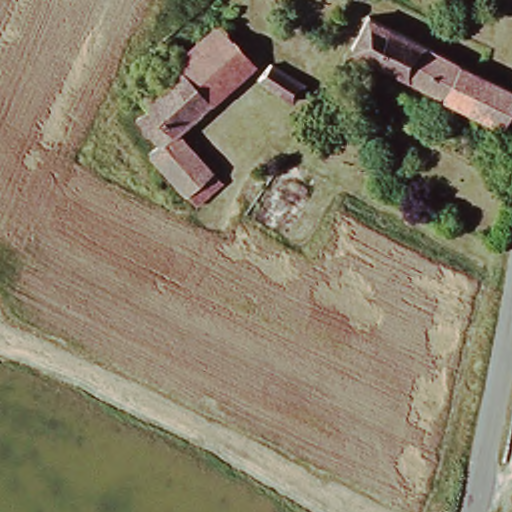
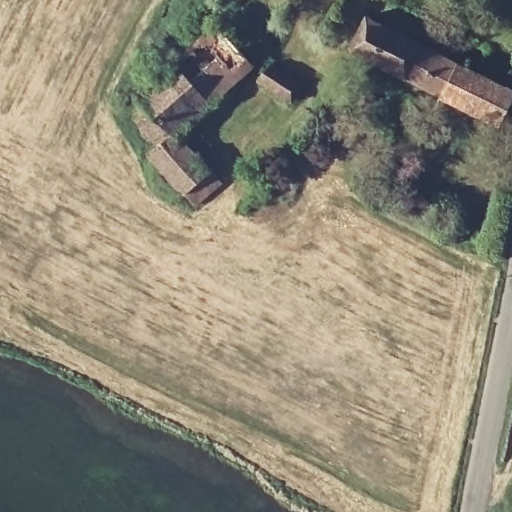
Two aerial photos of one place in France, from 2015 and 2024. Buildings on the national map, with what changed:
unchanged [(512,92),(512,100),(499,126),(348,50),(364,18),(512,92)]
unchanged [(140,117),(152,107),(143,97),(223,27),(257,64),(183,132),(180,130),(163,145),(140,117)]
unchanged [(256,80),(266,61),(303,84),(292,101),(256,80)]
unchanged [(154,151),(163,145),(180,130),(183,132),(202,154),(173,176),(154,151)]
unchanged [(202,154),(225,182),(199,205),(173,176),(202,154)]

